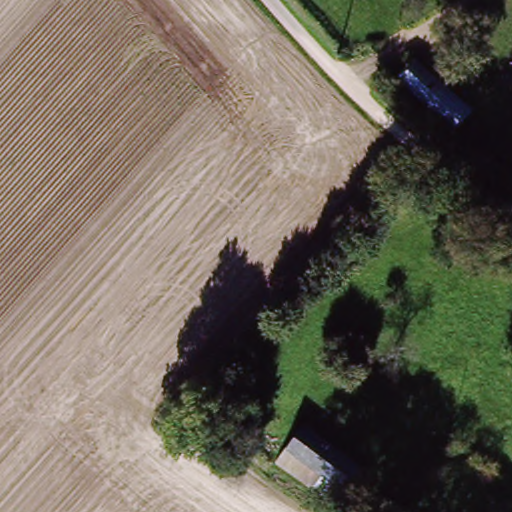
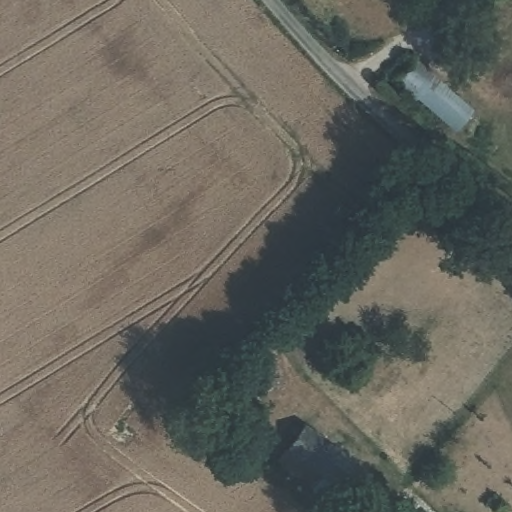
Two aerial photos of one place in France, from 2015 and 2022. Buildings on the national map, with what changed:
unchanged [(407,72),(463,121),(448,137),(412,105),(408,109),(390,93),(407,72)]
unchanged [(353,479),(345,473),(328,495),(312,483),(276,455),(284,444),(302,422),(354,462),(362,468),(353,479)]

